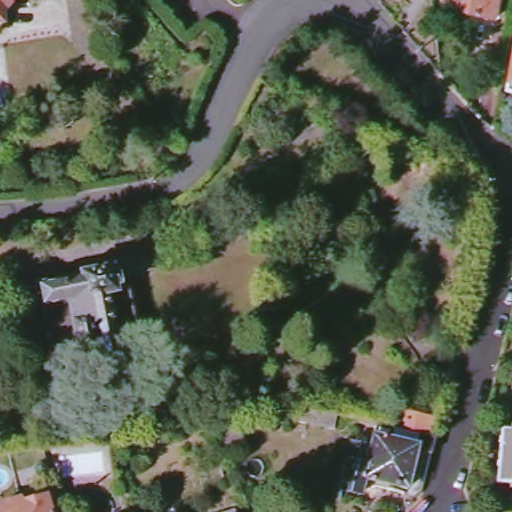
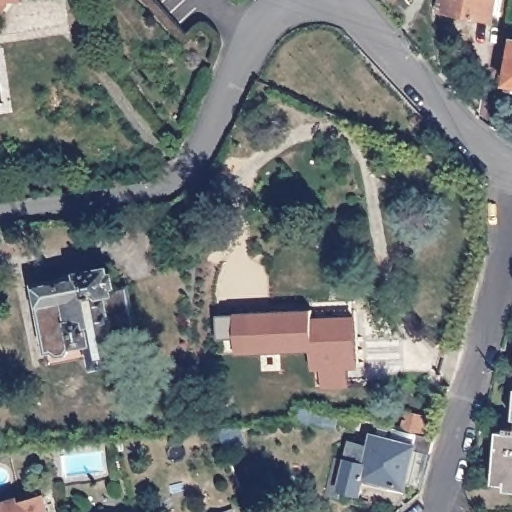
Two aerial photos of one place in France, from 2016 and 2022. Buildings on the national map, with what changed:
unchanged [(2,5),(4,26),(0,30),(0,0),(5,0),(2,5)]
unchanged [(441,11),(443,0),(502,0),(500,13),(494,12),(492,20),(441,11)]
unchanged [(512,57),(512,95),(504,93),(512,57)]
unchanged [(133,291),(141,332),(121,336),(127,367),(102,372),(97,348),(55,356),(46,310),(39,312),(38,305),(44,304),(42,292),(87,282),(86,280),(111,275),(115,276),(116,278),(116,279),(119,293),(133,291)]
new [(360,362),(313,365),(311,349),(220,356),(218,313),(311,310),(311,304),(361,300),(360,362)]
unchanged [(335,429),(298,420),(302,405),(339,414),(335,429)]
unchanged [(418,410),(444,416),(437,435),(446,437),(441,454),(428,450),(417,489),(415,488),(413,494),(397,489),(398,484),(376,478),(372,494),(353,490),(351,498),(337,494),(345,459),(357,462),(362,442),(381,447),(387,423),(413,429),(418,410)]
unchanged [(217,430),(216,428),(238,426),(245,444),(225,451),(217,430)]
unchanged [(495,485),(498,434),(508,434),(508,429),(512,429),(512,487),(510,486),(495,485)]
unchanged [(1,457),(12,456),(14,475),(4,476),(1,457)]
unchanged [(19,497),(20,503),(34,499),(32,494),(43,492),(44,496),(46,496),(50,512),(0,512),(0,511),(0,502),(19,497)]

